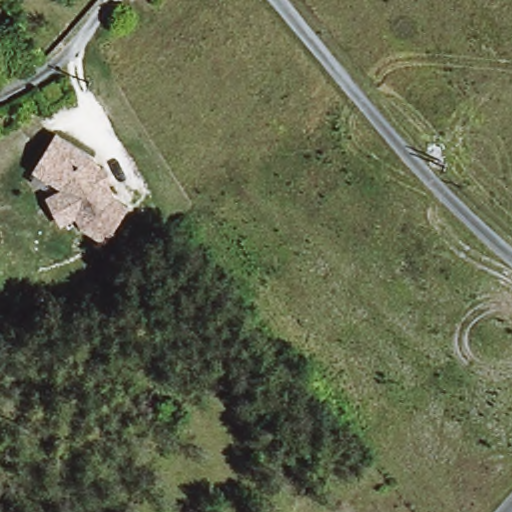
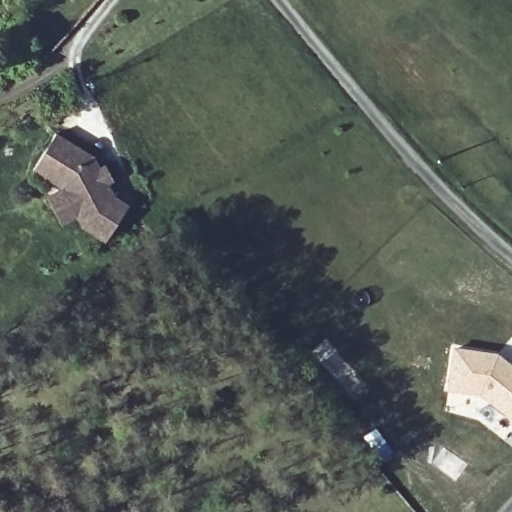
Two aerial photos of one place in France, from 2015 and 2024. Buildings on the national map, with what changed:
unchanged [(107,159),(116,180),(110,183),(116,195),(132,203),(109,242),(82,226),(79,217),(62,224),(47,196),(64,188),(34,173),(57,130),(107,159)]
new [(451,344),(497,352),(512,363),(512,422),(478,397),(442,391),(451,344)]

